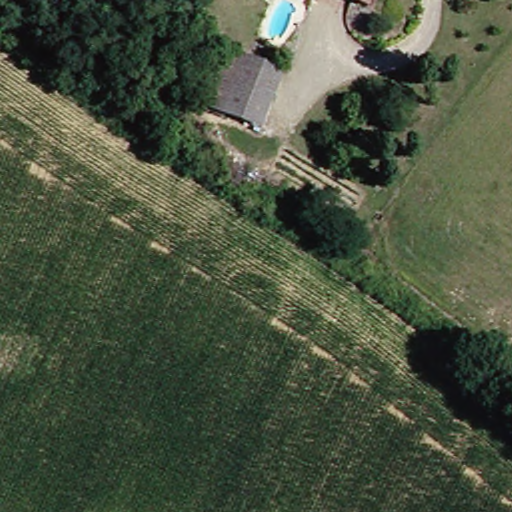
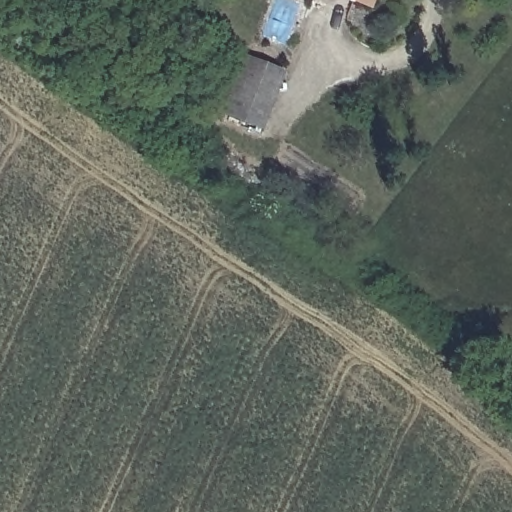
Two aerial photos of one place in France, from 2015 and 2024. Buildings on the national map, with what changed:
unchanged [(351,6),(336,0),(370,0),(366,12),(351,6)]
unchanged [(199,109),(223,53),(277,75),(253,131),(199,109)]

